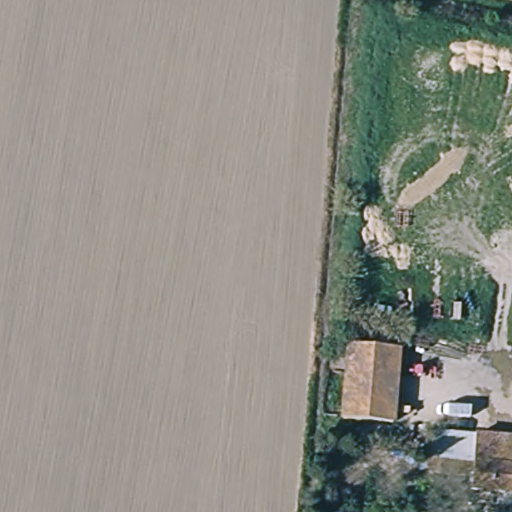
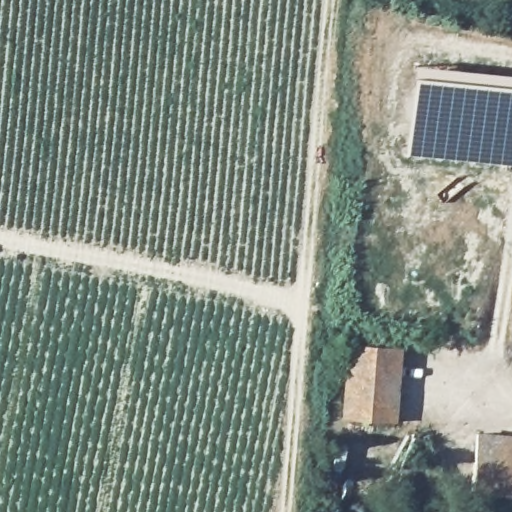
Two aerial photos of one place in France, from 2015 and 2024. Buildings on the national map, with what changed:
new [(406,154),(413,75),(414,63),(512,73),(512,164),(406,154)]
unchanged [(396,426),(342,422),(348,347),(403,350),(396,426)]
unchanged [(461,478),(462,466),(428,463),(429,448),(464,451),(484,453),(486,433),(512,435),(512,483),(461,478)]

